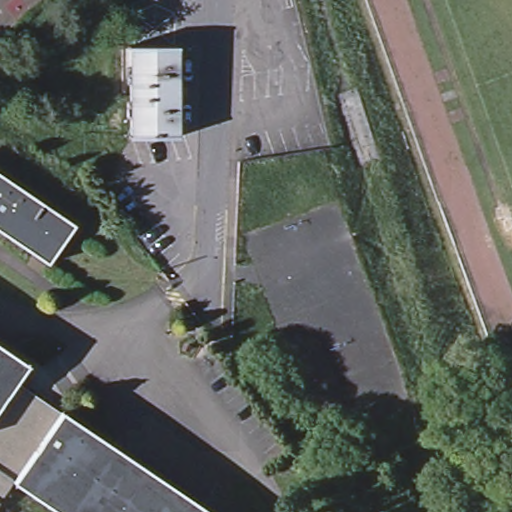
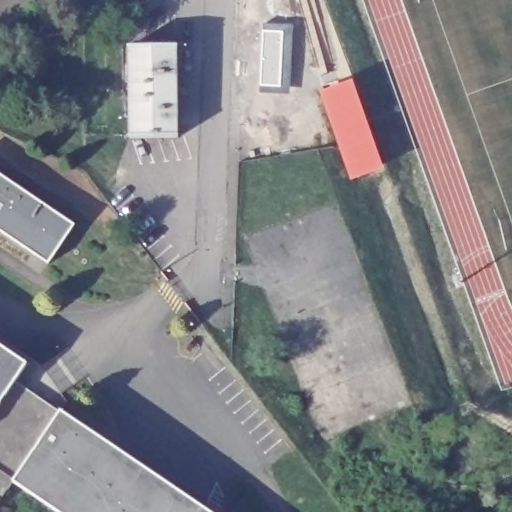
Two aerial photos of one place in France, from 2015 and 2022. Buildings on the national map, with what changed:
new [(293,25),(290,94),(260,92),(264,23),(293,25)]
unchanged [(130,39),(175,38),(176,131),(131,132),(130,39)]
new [(348,74),(380,162),(349,174),(317,85),(348,74)]
unchanged [(0,174),(75,225),(50,262),(0,229),(0,174)]
unchanged [(19,383),(0,410),(0,341),(32,362),(19,383)]
unchanged [(0,410),(19,383),(64,413),(17,482),(0,508),(0,410)]
unchanged [(65,411),(213,512),(62,512),(17,482),(64,413),(65,411)]

